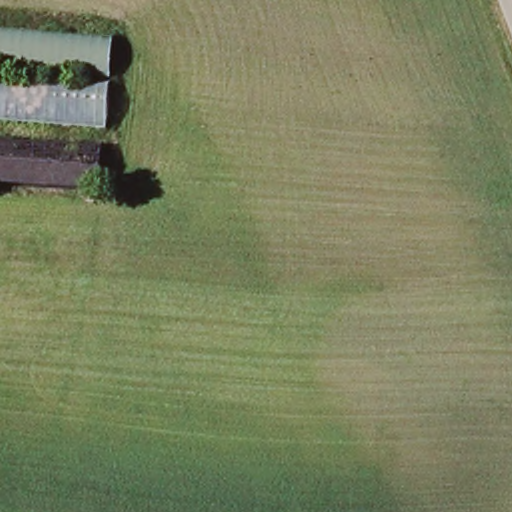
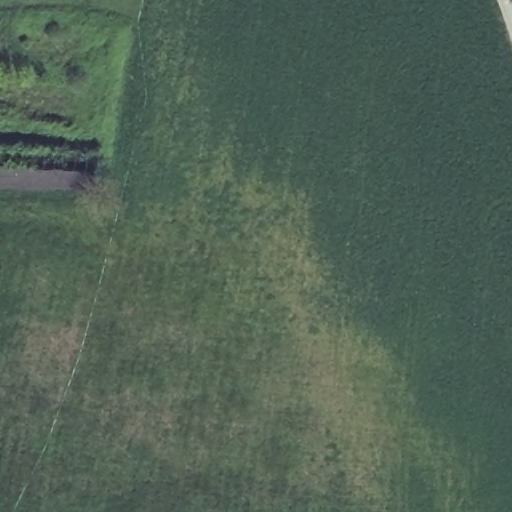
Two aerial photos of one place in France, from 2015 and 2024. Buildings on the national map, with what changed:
demolished [(0,26),(117,35),(110,126),(0,119),(0,26)]
unchanged [(102,191),(0,181),(0,137),(107,147),(102,191)]

